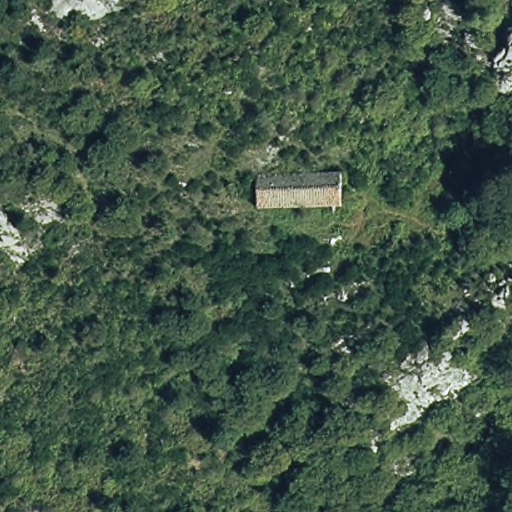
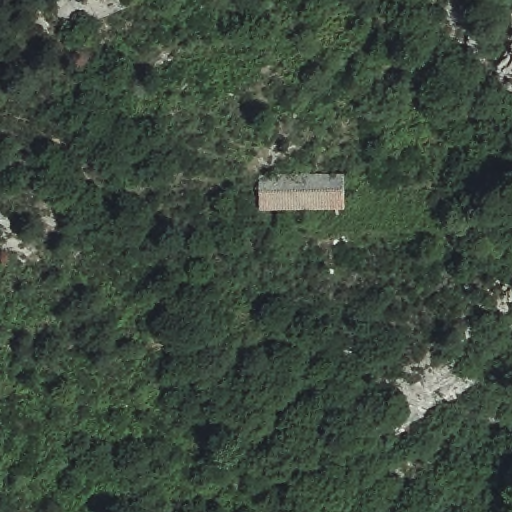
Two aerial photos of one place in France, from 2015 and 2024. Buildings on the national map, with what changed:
unchanged [(261,179),(342,179),(344,210),(260,216),(261,179)]

